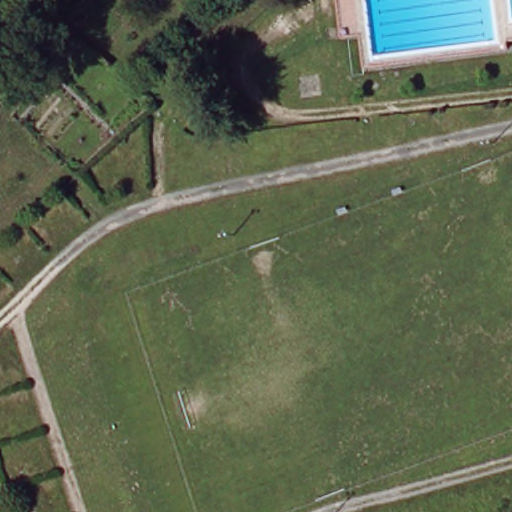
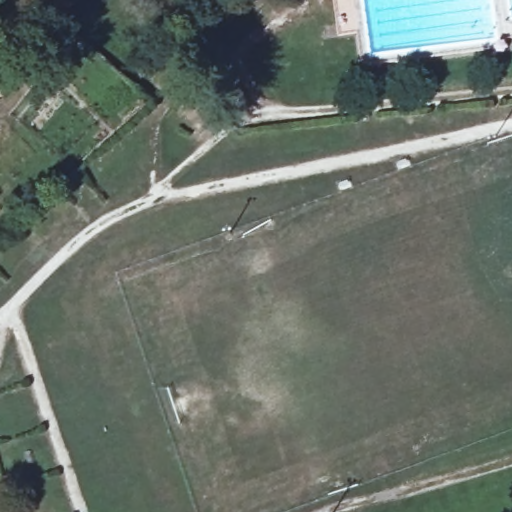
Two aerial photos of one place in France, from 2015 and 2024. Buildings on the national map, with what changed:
unchanged [(63,19),(34,53),(22,41),(51,8),(63,19)]

